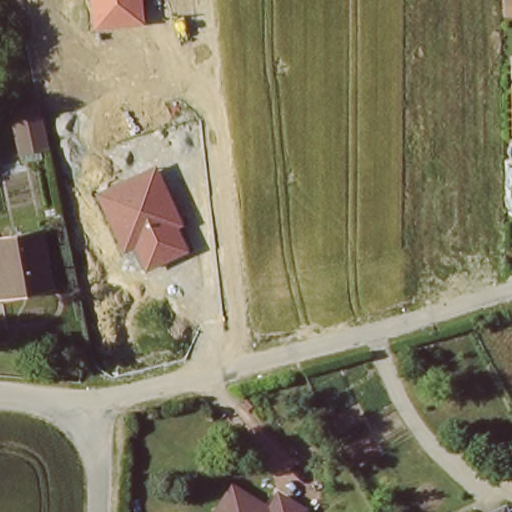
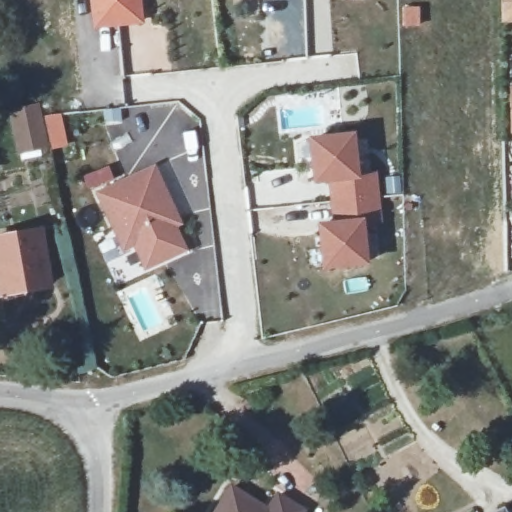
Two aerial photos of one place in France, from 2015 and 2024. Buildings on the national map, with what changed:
unchanged [(145,25),(93,30),(90,0),(142,0),(145,25)]
unchanged [(511,135),(509,86),(512,86),(512,134),(511,135)]
unchanged [(43,146),(17,151),(9,109),(34,103),(43,146)]
new [(351,139),(355,179),(372,178),(377,224),(360,226),(364,266),(323,270),(319,229),(335,228),(330,183),(314,185),(310,143),(351,139)]
unchanged [(145,272),(135,248),(123,254),(95,193),(156,164),(184,226),(179,228),(189,252),(145,272)]
unchanged [(0,289),(0,235),(38,228),(47,282),(0,289)]
unchanged [(271,508),(281,493),(306,509),(303,512),(218,512),(234,486),(271,508)]
unchanged [(502,512),(492,512),(500,508),(502,512)]

